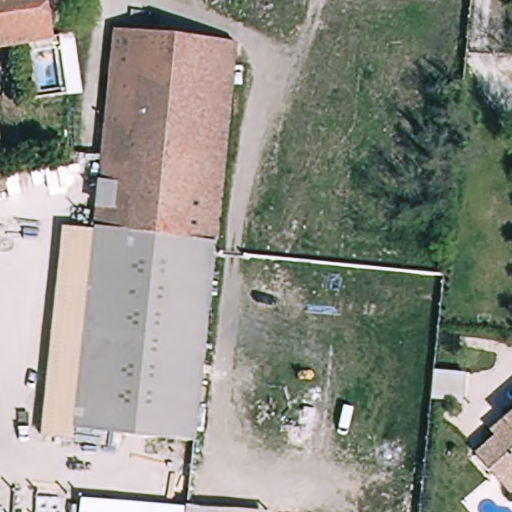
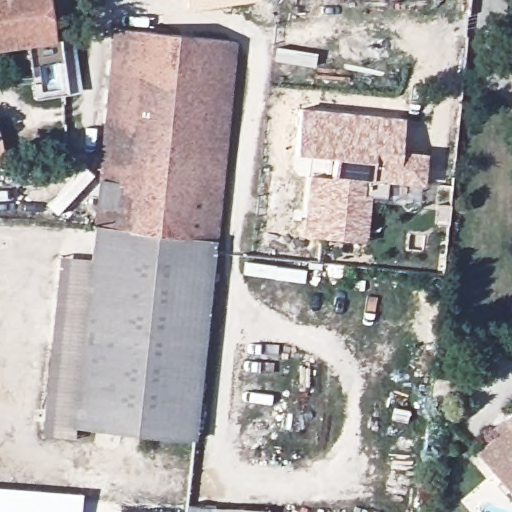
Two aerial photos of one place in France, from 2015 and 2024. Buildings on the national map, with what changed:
unchanged [(0,46),(0,0),(49,0),(56,36),(30,41),(0,46)]
new [(189,10),(183,7),(182,0),(260,0),(189,10)]
unchanged [(238,41),(211,268),(210,283),(192,434),(78,425),(102,235),(122,28),(238,41)]
new [(318,53),(317,67),(275,62),(277,49),(318,53)]
new [(331,181),(333,158),(295,155),(301,108),(405,119),(402,152),(427,155),(424,187),(388,184),(386,199),(372,197),(366,242),(303,237),(309,177),(331,181)]
unchanged [(1,129),(2,160),(0,160),(0,129),(1,129)]
unchanged [(2,160),(6,192),(0,193),(0,160),(2,160)]
unchanged [(78,425),(75,441),(42,435),(64,227),(100,231),(78,425)]
new [(434,371),(465,373),(463,402),(431,400),(434,371)]
unchanged [(479,455),(499,438),(494,433),(512,417),(512,495),(505,487),(479,455)]
new [(81,512),(0,512),(0,488),(81,493),(83,500),(81,512)]
unchanged [(81,512),(83,500),(223,512),(81,512)]

